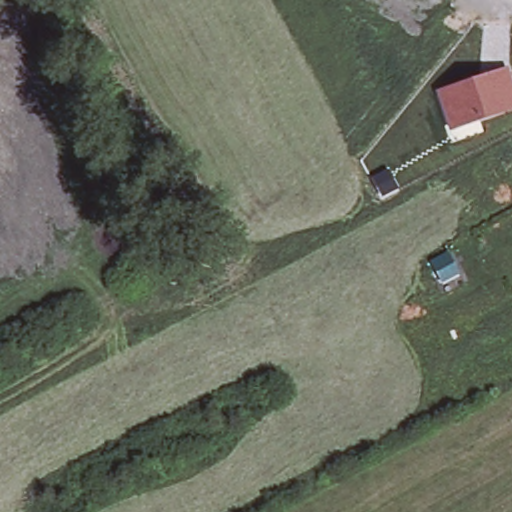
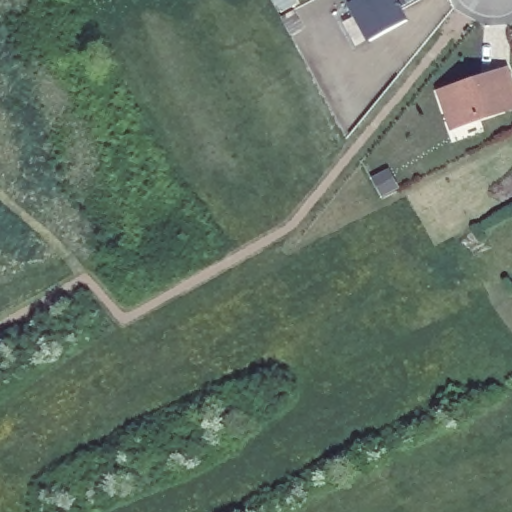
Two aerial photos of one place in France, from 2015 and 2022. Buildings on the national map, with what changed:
new [(356,0),(406,0),(408,4),(402,7),(410,19),(370,41),(348,5),(356,0)]
unchanged [(508,67),(512,78),(512,109),(450,130),(438,91),(508,67)]

